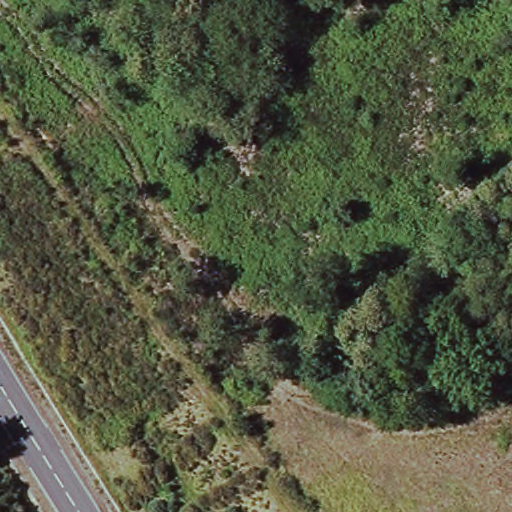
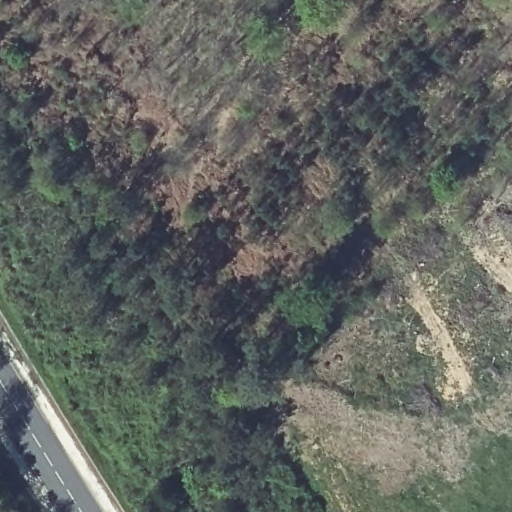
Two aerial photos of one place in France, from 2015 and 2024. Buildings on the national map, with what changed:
[]

